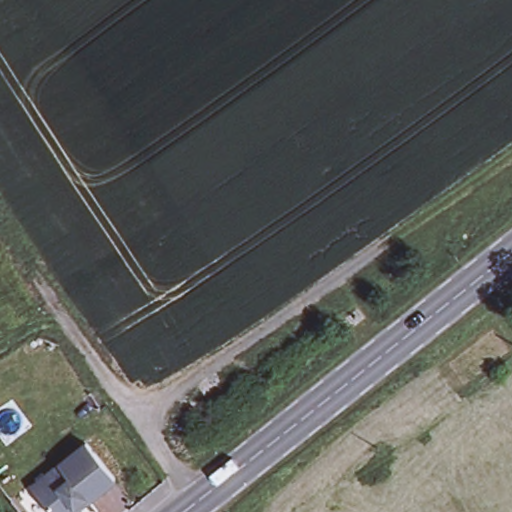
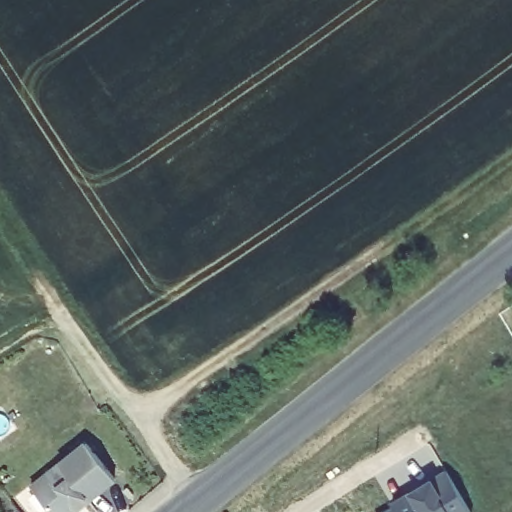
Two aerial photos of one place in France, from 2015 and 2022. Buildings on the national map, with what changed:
unchanged [(72,458),(88,445),(117,481),(100,495),(90,503),(79,512),(52,512),(33,490),(72,458)]
new [(391,502),(409,491),(431,476),(447,469),(473,512),(386,512),(394,507),(391,502)]

